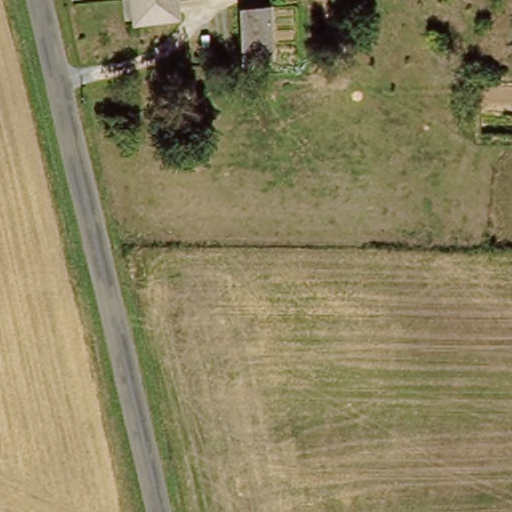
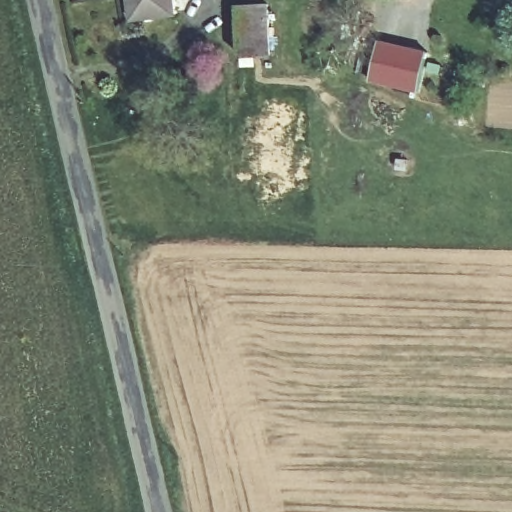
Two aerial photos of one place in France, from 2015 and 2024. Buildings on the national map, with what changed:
unchanged [(131,0),(173,0),(174,7),(132,9),(131,0)]
unchanged [(235,0),(264,0),(267,49),(235,49),(235,0)]
new [(417,90),(370,81),(377,39),(427,49),(417,90)]

